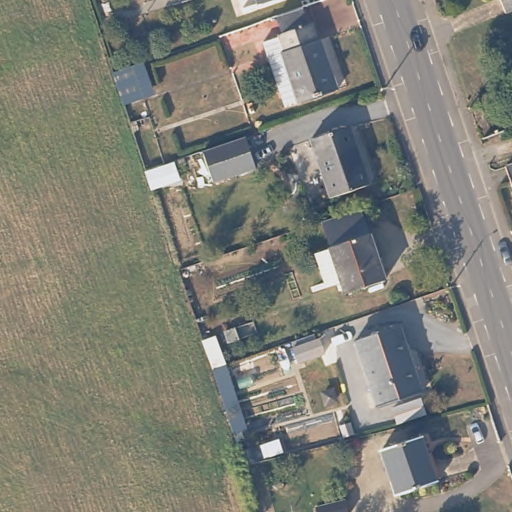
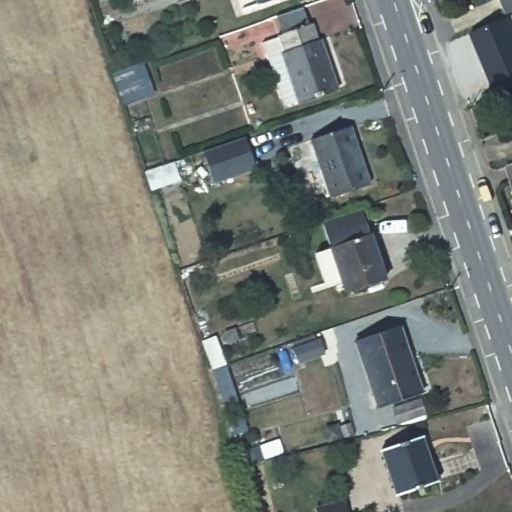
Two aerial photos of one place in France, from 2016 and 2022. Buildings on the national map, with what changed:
unchanged [(284,31),(278,14),(304,5),(310,22),(313,20),(318,35),(321,34),(339,84),(299,98),(299,96),(286,101),(264,40),(280,34),(280,33),(284,31)]
new [(512,85),(494,92),(469,30),(509,15),(512,23),(512,85)]
unchanged [(146,95),(125,103),(116,73),(136,65),(146,95)]
unchanged [(502,127),(487,135),(473,105),(489,99),(502,127)]
unchanged [(372,186),(332,199),(311,136),(351,123),(372,186)]
unchanged [(248,139),(259,169),(217,185),(206,154),(248,139)]
unchanged [(512,156),(512,190),(502,160),(512,156)]
unchanged [(177,164),(183,180),(154,191),(148,175),(177,164)]
unchanged [(322,219),(361,205),(370,233),(331,245),(322,219)]
unchanged [(384,279),(347,292),(341,276),(326,281),(317,252),(331,247),(331,245),(370,233),(384,279)]
unchanged [(418,386),(373,402),(352,338),(396,322),(418,386)]
unchanged [(436,477),(396,489),(382,444),(422,432),(436,477)]

